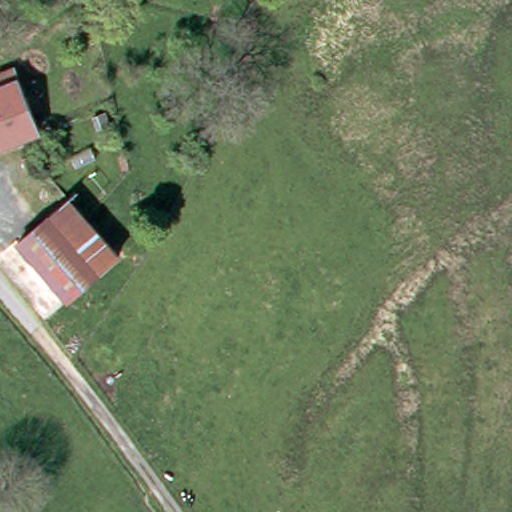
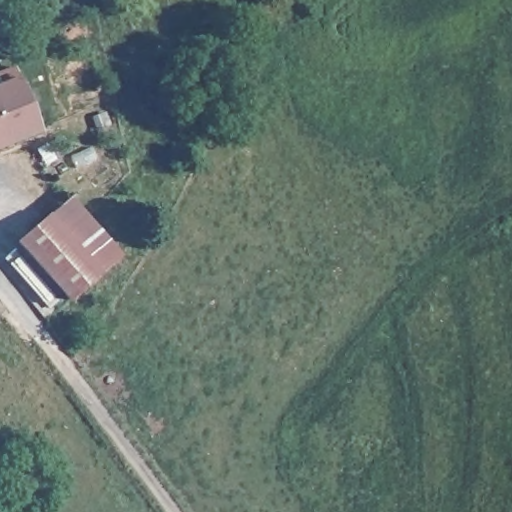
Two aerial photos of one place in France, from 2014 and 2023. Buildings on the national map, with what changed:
unchanged [(35,130),(0,145),(0,88),(0,71),(10,67),(35,130)]
unchanged [(71,195),(121,251),(73,294),(25,238),(71,195)]

